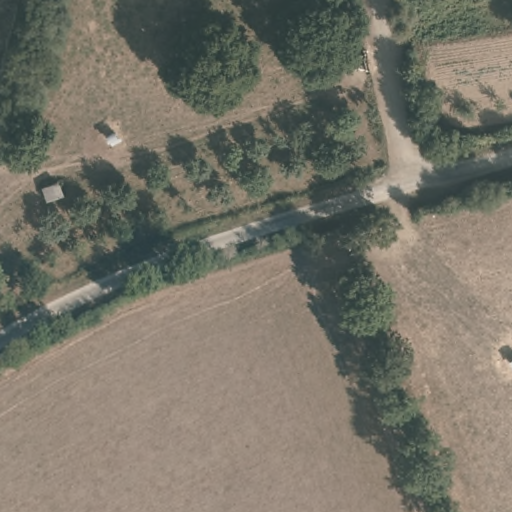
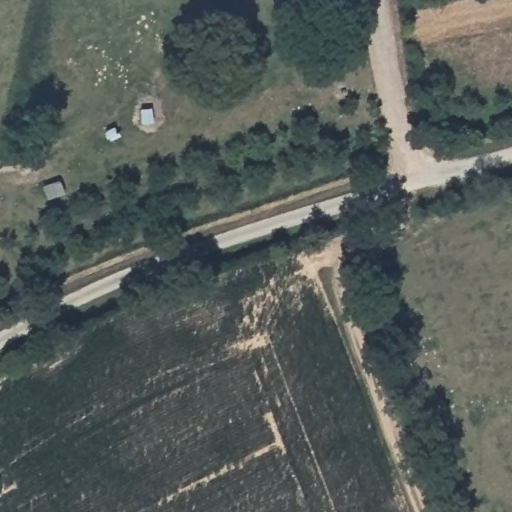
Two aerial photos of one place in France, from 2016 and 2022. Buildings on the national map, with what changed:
[]

